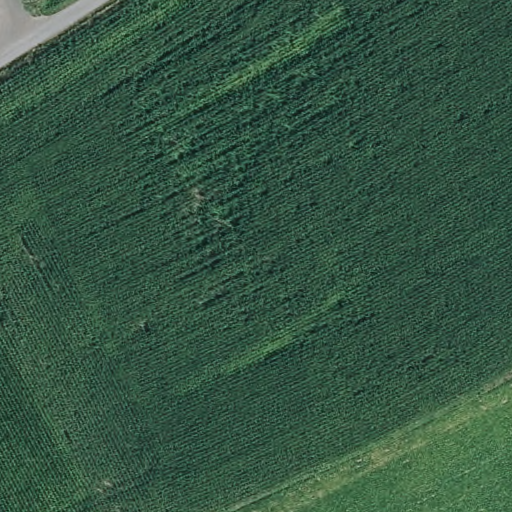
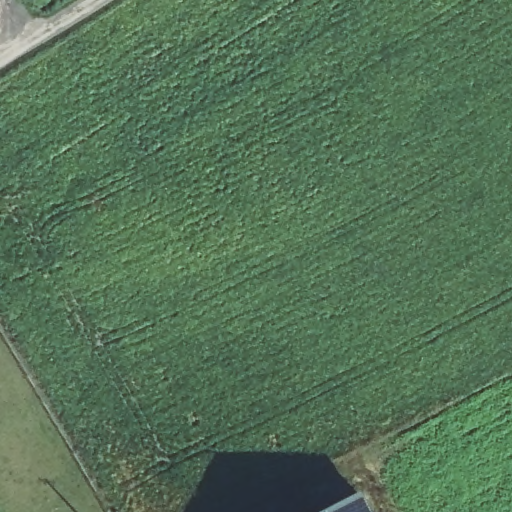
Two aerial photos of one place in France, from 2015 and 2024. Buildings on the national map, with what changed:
new [(320,512),(360,492),(370,512),(320,512)]

